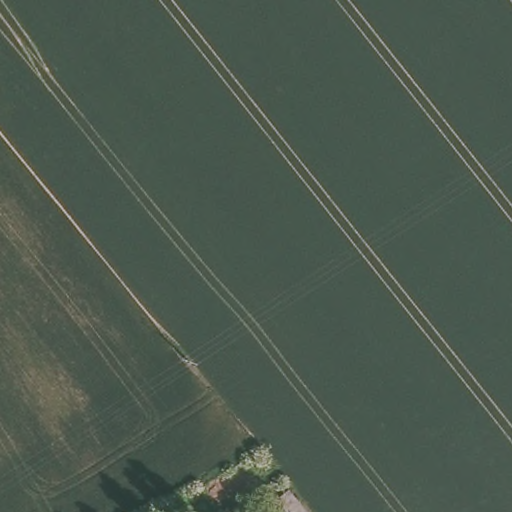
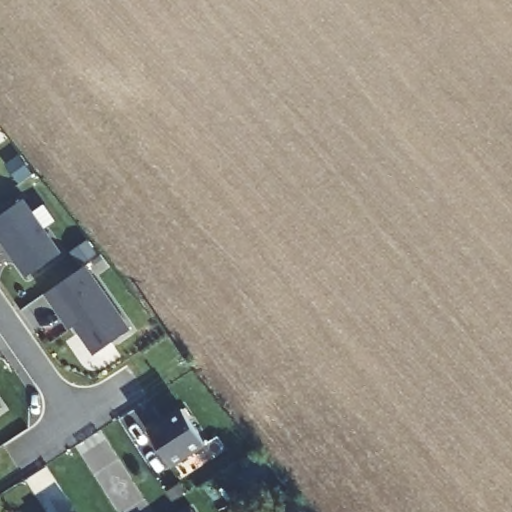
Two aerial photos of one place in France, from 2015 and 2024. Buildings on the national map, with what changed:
new [(61,256),(28,278),(0,237),(0,219),(25,202),(61,256)]
new [(71,328),(66,331),(42,296),(84,269),(129,333),(91,358),(71,328)]
new [(0,410),(0,408),(1,410),(0,410)]
new [(182,411),(205,447),(172,468),(149,433),(182,411)]

